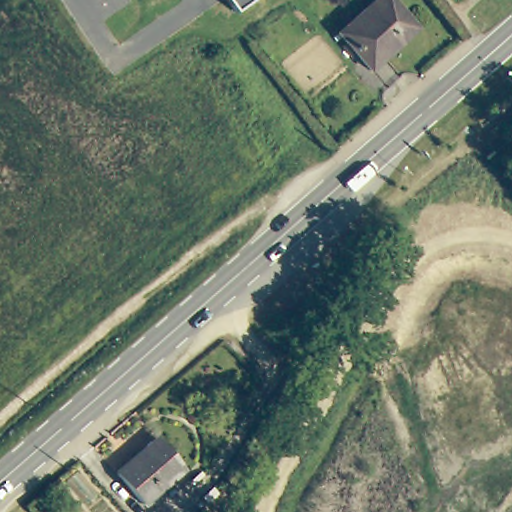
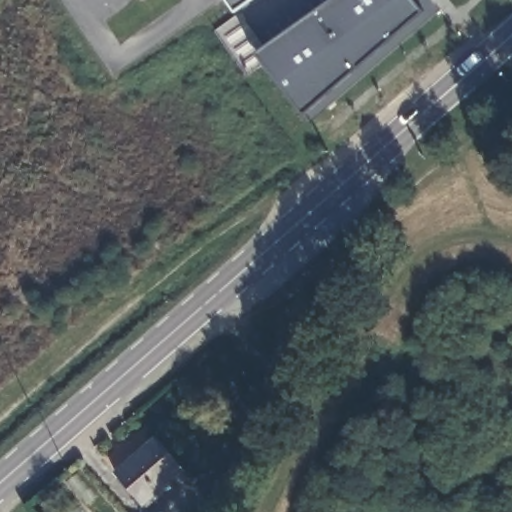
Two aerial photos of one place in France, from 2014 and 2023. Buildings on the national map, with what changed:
unchanged [(234,12),(226,0),(251,0),(234,12)]
new [(311,122),(306,114),(257,54),(331,0),(434,0),(441,11),(311,122)]
demolished [(422,26),(373,67),(341,31),(377,0),(399,0),(422,26)]
unchanged [(191,468),(150,502),(124,471),(163,437),(191,468)]

